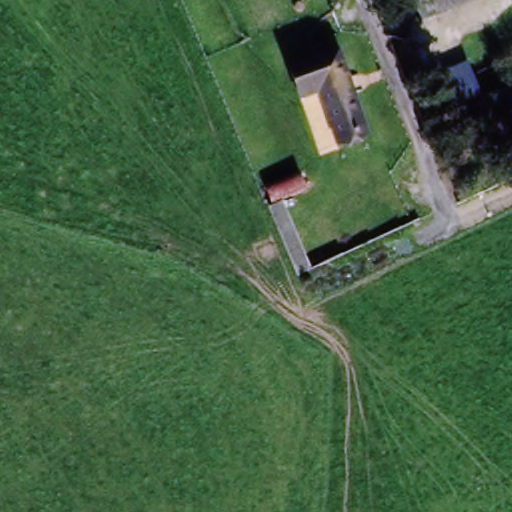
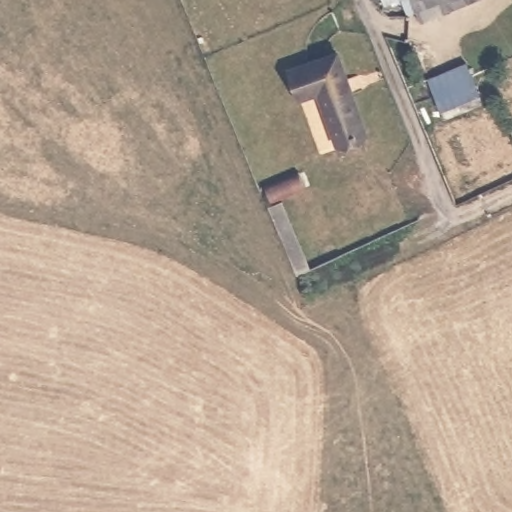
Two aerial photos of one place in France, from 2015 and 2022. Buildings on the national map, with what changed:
unchanged [(467,8),(427,25),(416,0),(483,0),(467,8)]
unchanged [(341,145),(319,94),(301,102),(289,73),(336,54),(369,134),(341,145)]
unchanged [(428,76),(466,60),(480,93),(484,101),(445,117),(441,109),(428,76)]
unchanged [(302,188),(269,203),(263,187),(296,173),(302,188)]
unchanged [(308,272),(298,276),(295,278),(291,269),(269,208),(269,207),(279,203),(308,272)]

